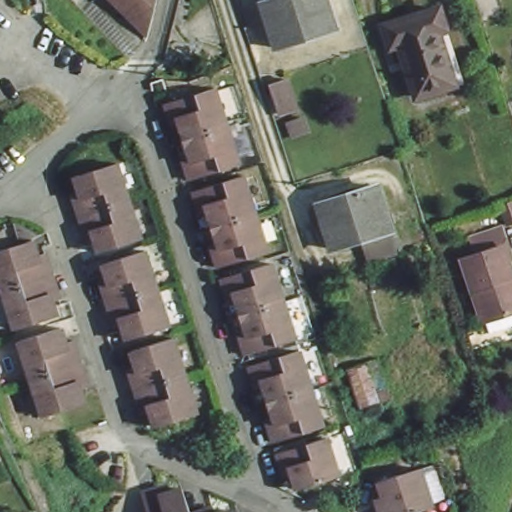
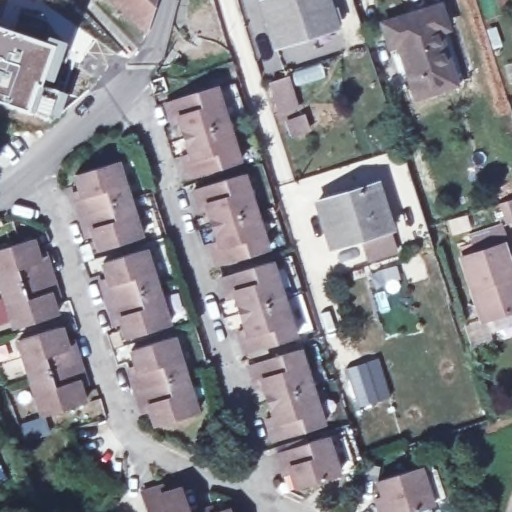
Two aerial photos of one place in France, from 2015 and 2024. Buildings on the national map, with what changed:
unchanged [(112,0),(148,0),(142,29),(112,0)]
unchanged [(272,40),(258,0),(317,0),(324,24),(272,40)]
unchanged [(444,26),(435,29),(450,80),(412,92),(396,43),(388,45),(382,26),(438,8),(444,26)]
new [(50,36),(66,42),(51,86),(69,94),(53,122),(0,105),(0,25),(49,39),(50,36)]
unchanged [(291,73),(301,102),(284,107),(275,78),(291,73)]
unchanged [(167,115),(163,101),(209,86),(220,121),(232,157),(185,172),(181,158),(186,156),(179,135),(173,114),(167,115)]
unchanged [(310,127),(298,131),(293,115),(305,110),(310,127)]
unchanged [(138,234),(94,248),(89,228),(83,231),(76,210),(69,186),(77,184),(73,172),(113,158),(125,195),(138,234)]
unchanged [(200,204),(196,205),(192,190),(238,175),(249,210),(259,244),(212,260),(207,246),(212,243),(206,224),(200,204)]
unchanged [(369,250),(363,230),(331,240),(316,196),(375,179),(395,242),(369,250)]
unchanged [(36,251),(42,269),(47,286),(42,287),(48,304),(7,316),(0,296),(0,240),(25,233),(32,253),(36,251)]
unchanged [(512,240),(512,308),(494,313),(473,251),(512,240)]
unchanged [(165,324),(122,339),(117,318),(110,321),(105,300),(99,283),(105,281),(99,263),(142,249),(153,285),(165,324)]
unchanged [(269,262),(281,299),(291,331),(244,346),(240,334),(244,332),(238,312),(231,292),(227,293),(223,278),(269,262)]
unchanged [(77,375),(72,378),(78,396),(38,410),(27,372),(15,334),(54,322),(59,338),(64,337),(70,358),(77,375)]
unchanged [(169,339),(181,374),(193,413),(151,426),(147,411),(139,414),(133,389),(127,372),(134,369),(128,352),(169,339)]
unchanged [(296,349),(307,385),(319,421),(273,435),(265,413),(269,411),(265,398),(259,379),(254,380),(250,363),(296,349)]
unchanged [(376,399),(357,404),(347,373),(345,362),(365,359),(376,399)]
unchanged [(334,475),(296,487),(287,460),(280,462),(276,450),(321,435),(334,475)]
unchanged [(426,508),(416,512),(375,512),(374,508),(382,505),(373,482),(412,468),(426,508)]
unchanged [(191,512),(149,512),(143,491),(160,486),(162,494),(183,488),(191,512)]
unchanged [(207,509),(207,512),(196,512),(207,509)]
unchanged [(34,512),(29,512),(33,510),(34,512)]
unchanged [(229,510),(229,512),(223,512),(229,510)]

